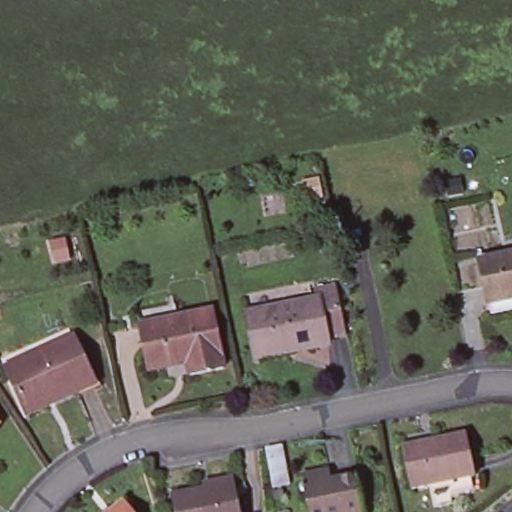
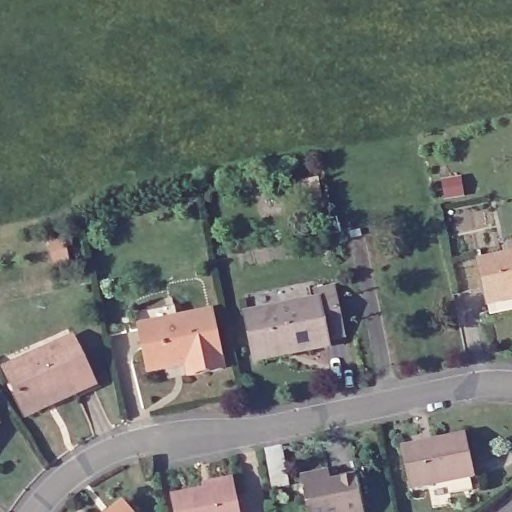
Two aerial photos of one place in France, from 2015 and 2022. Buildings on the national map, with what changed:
unchanged [(360,226),(361,233),(350,236),(349,228),(360,226)]
unchanged [(483,295),(474,255),(512,247),(512,301),(485,306),(483,295)]
unchanged [(254,357),(245,313),(315,299),(314,289),(332,287),(340,333),(325,336),(327,342),(254,357)]
unchanged [(223,366),(189,373),(187,361),(149,369),(140,325),(138,317),(175,309),(177,317),(211,310),(223,366)]
unchanged [(24,407),(9,374),(5,366),(25,358),(72,335),(87,366),(92,364),(101,384),(78,395),(75,390),(54,400),(26,412),(24,407)]
unchanged [(448,487),(450,497),(434,500),(429,478),(410,482),(401,440),(463,428),(472,469),(467,470),(470,483),(448,487)]
unchanged [(307,512),(300,474),(327,469),(330,481),(337,479),(355,476),(362,512),(307,512)]
unchanged [(231,512),(169,512),(167,499),(227,487),(231,512)]
unchanged [(133,512),(105,512),(122,498),(133,512)]

